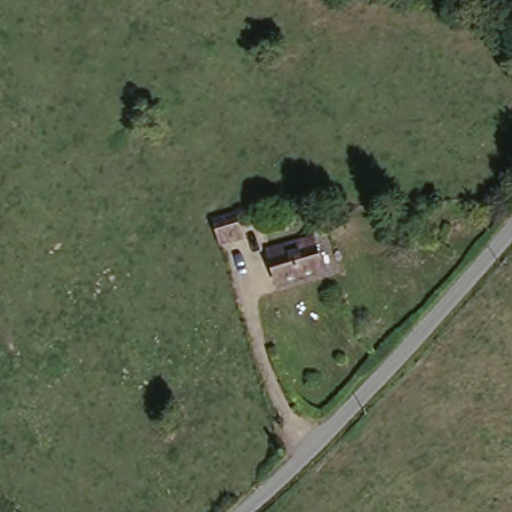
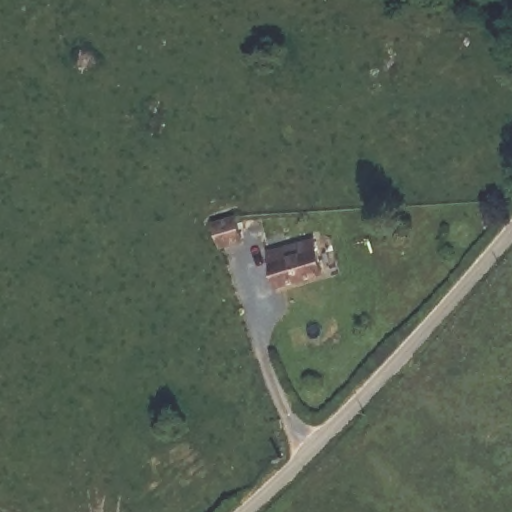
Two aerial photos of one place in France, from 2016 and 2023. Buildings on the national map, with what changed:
unchanged [(249,241),(224,250),(215,217),(242,216),(249,241)]
unchanged [(276,282),(272,265),(269,250),(318,236),(327,270),(276,282)]

